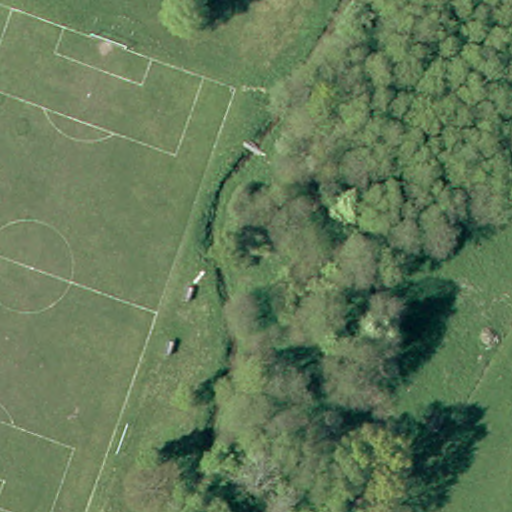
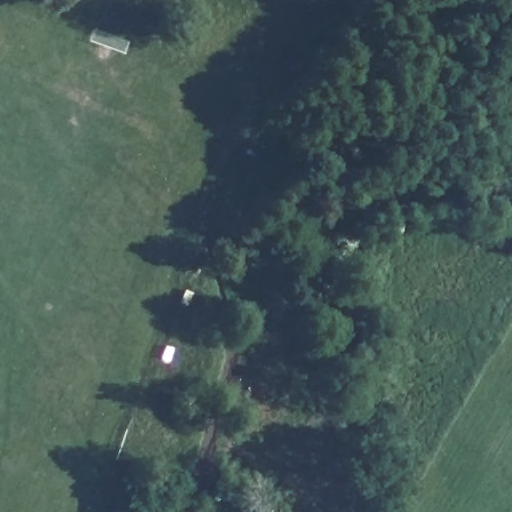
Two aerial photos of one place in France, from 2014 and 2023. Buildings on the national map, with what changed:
[]

